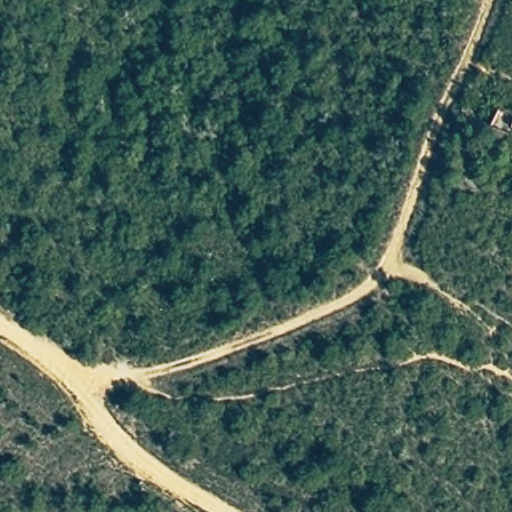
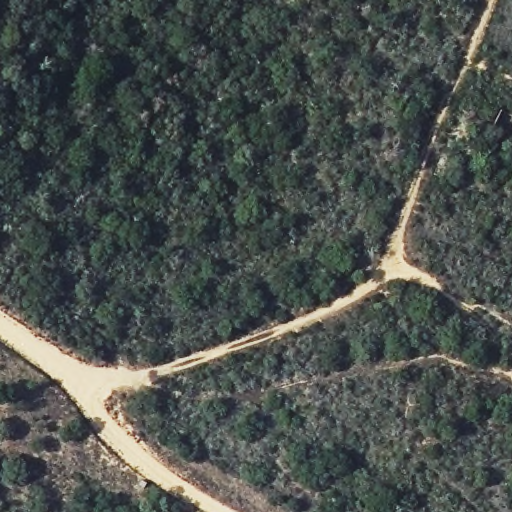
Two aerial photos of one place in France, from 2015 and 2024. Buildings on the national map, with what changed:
[]

